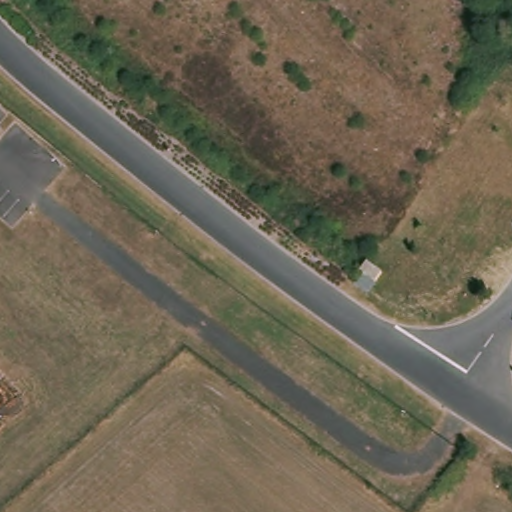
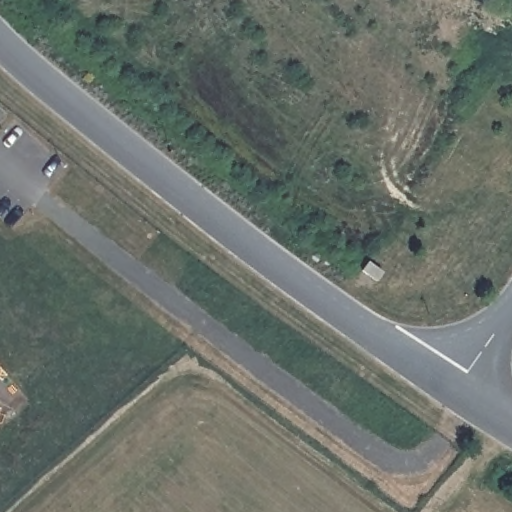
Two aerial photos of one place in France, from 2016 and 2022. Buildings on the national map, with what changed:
[]

